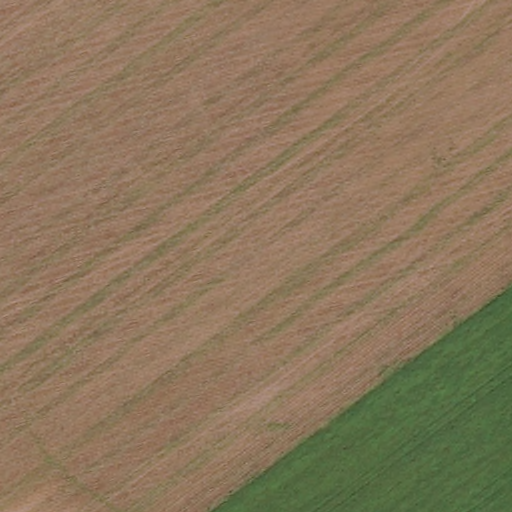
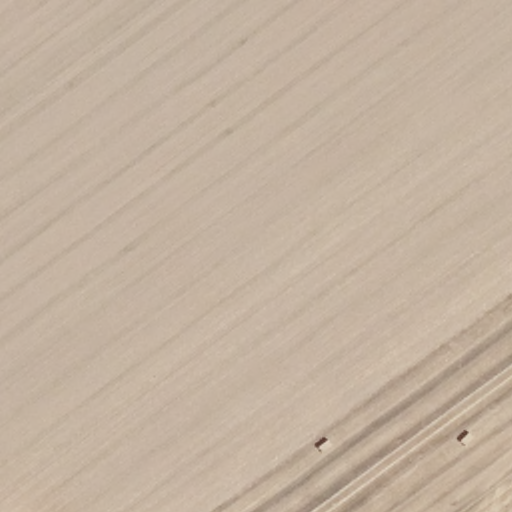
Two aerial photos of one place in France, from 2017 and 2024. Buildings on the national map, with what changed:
[]

